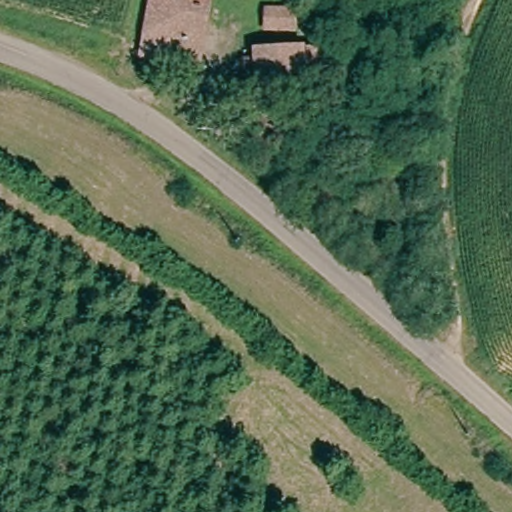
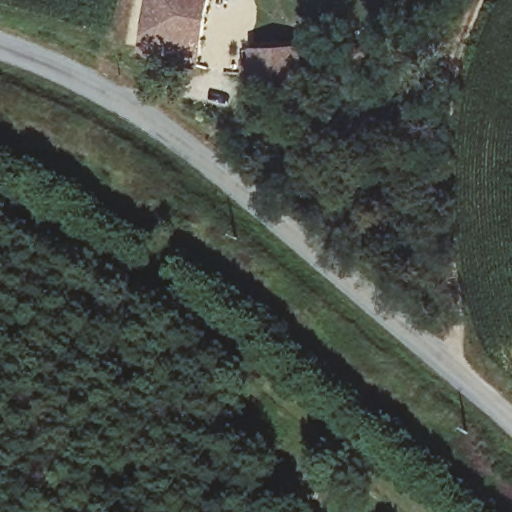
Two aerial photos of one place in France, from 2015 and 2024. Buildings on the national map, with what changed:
unchanged [(202,0),(193,65),(138,57),(147,0),(202,0)]
unchanged [(277,19),(277,0),(302,0),(302,20),(277,19)]
unchanged [(237,64),(258,64),(261,49),(322,47),(325,68),(302,70),(299,78),(235,78),(237,64)]

